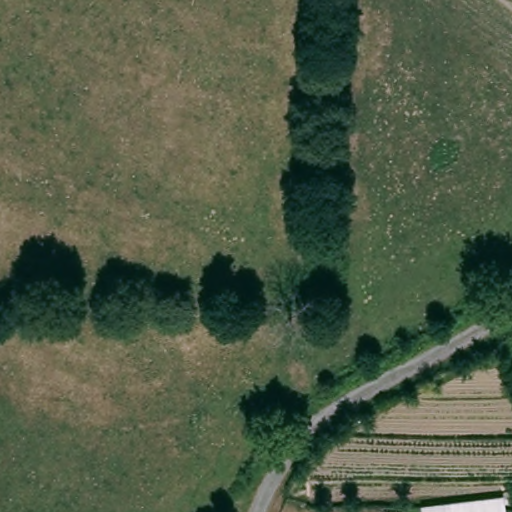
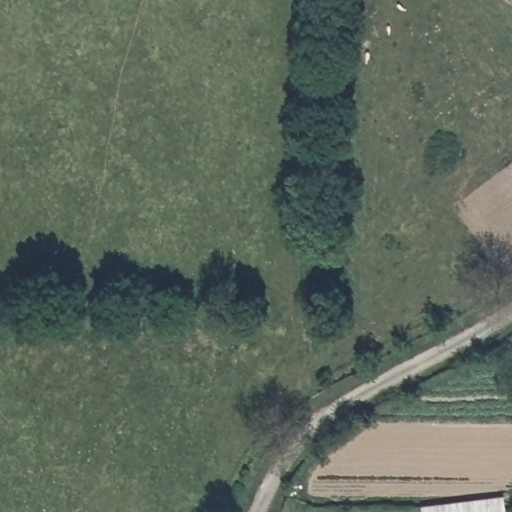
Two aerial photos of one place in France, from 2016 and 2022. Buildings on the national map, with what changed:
unchanged [(425,506),(508,496),(509,512),(425,512),(425,506)]

